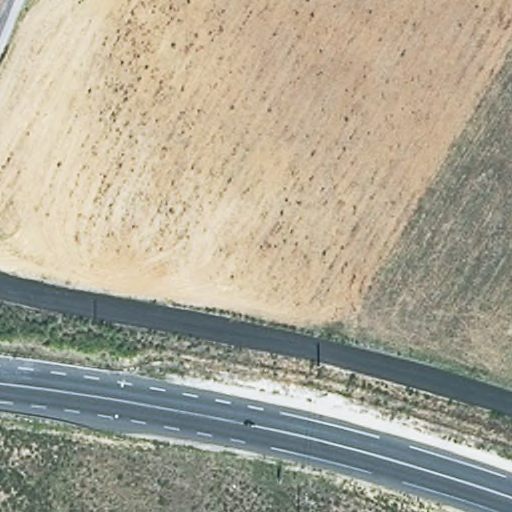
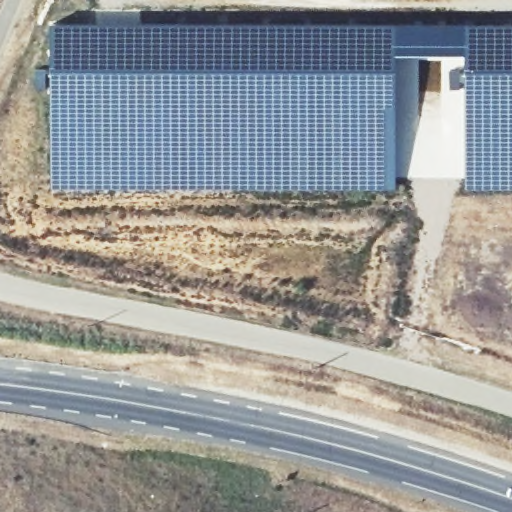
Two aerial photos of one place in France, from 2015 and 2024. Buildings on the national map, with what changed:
new [(50,188),(50,23),(394,23),(393,189),(50,188)]
new [(512,23),(512,189),(464,189),(463,23),(512,23)]

